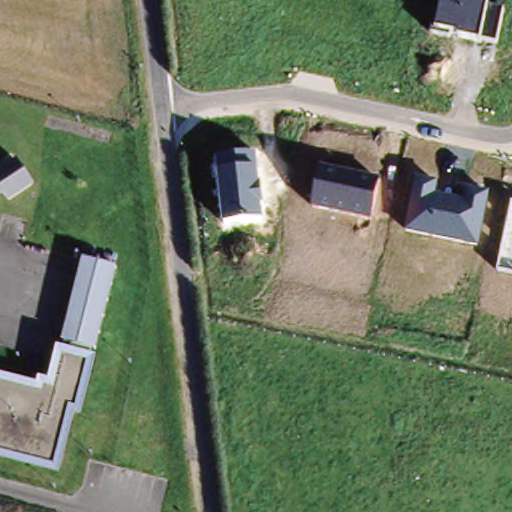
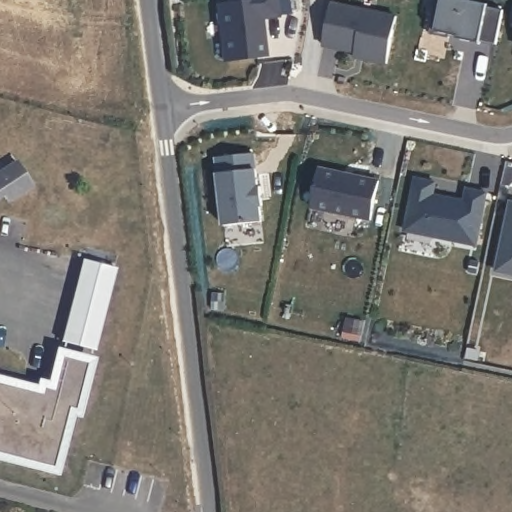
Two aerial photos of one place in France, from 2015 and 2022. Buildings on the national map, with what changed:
new [(258,9),(257,0),(273,0),(276,25),(258,27),(258,29),(256,30),(258,42),(265,42),(267,59),(225,64),(219,14),(258,9)]
unchanged [(488,3),(488,7),(504,11),(496,45),(434,32),(440,0),(469,0),(488,3)]
new [(323,45),(332,3),(397,16),(387,64),(364,59),(355,57),(356,52),(323,45)]
unchanged [(226,223),(218,156),(257,151),(264,219),(226,223)]
unchanged [(0,178),(0,175),(23,161),(37,184),(13,199),(7,190),(0,194),(0,182),(2,181),(0,178)]
unchanged [(313,207),(321,168),(380,180),(372,220),(313,207)]
unchanged [(407,231),(417,178),(439,182),(437,193),(468,199),(469,188),(489,192),(479,246),(407,231)]
unchanged [(511,200),(512,200),(512,272),(498,268),(511,200)]
unchanged [(108,350),(74,341),(94,260),(128,269),(108,350)]

